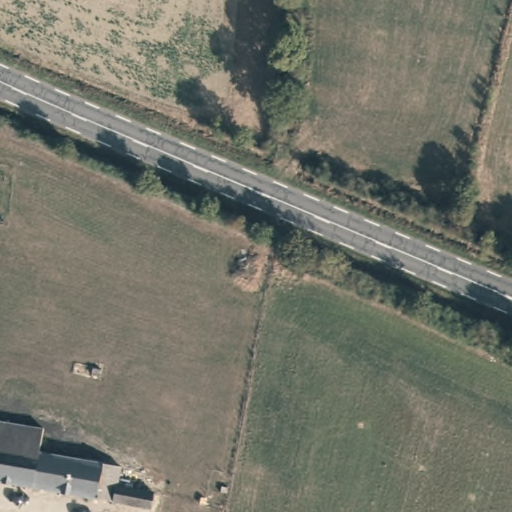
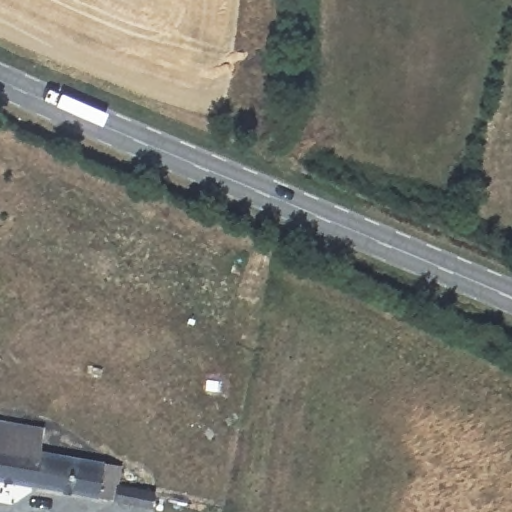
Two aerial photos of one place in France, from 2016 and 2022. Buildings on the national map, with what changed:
unchanged [(148,511),(0,481),(0,420),(31,426),(43,428),(39,449),(118,468),(115,485),(152,494),(148,511)]

